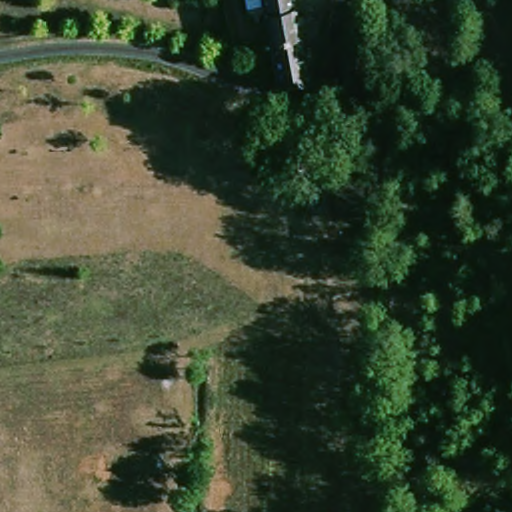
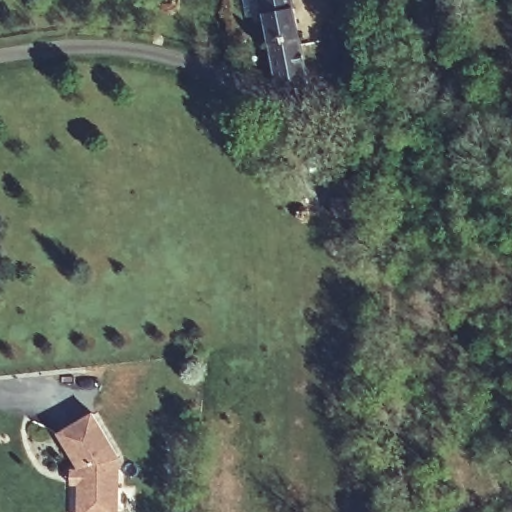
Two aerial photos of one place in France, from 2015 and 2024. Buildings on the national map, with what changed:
unchanged [(251,0),(294,0),(305,81),(282,84),(270,8),(252,11),(251,0)]
unchanged [(349,93),(350,88),(342,87),(343,48),(365,52),(362,94),(349,93)]
unchanged [(367,180),(367,213),(328,209),(331,178),(367,180)]
new [(93,413),(121,460),(120,512),(78,512),(78,468),(57,434),(93,413)]

